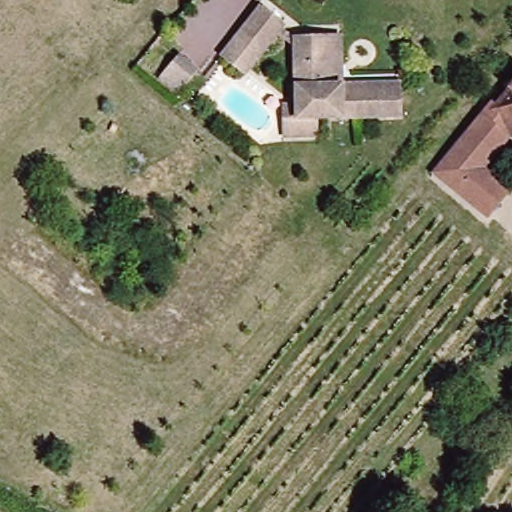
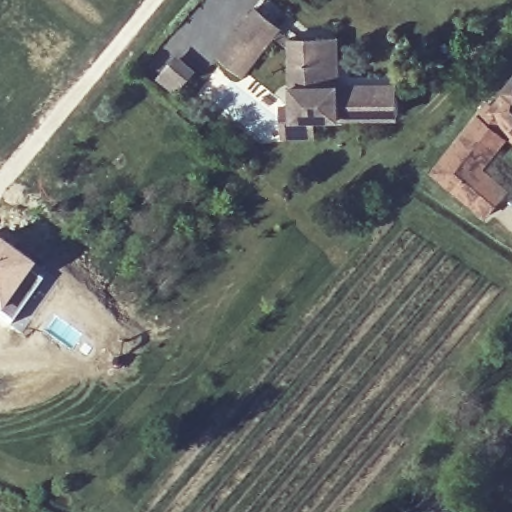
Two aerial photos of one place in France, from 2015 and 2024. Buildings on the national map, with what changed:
unchanged [(227,58),(262,10),(285,30),(250,76),(227,58)]
unchanged [(293,140),(293,121),(300,121),(298,41),(327,40),(342,39),(343,86),(345,92),(399,87),(399,118),(318,120),(317,139),(293,140)]
unchanged [(187,91),(171,78),(187,58),(204,71),(187,91)]
unchanged [(504,132),(482,157),(460,139),(495,100),(500,102),(512,88),(512,139),(504,132)]
unchanged [(482,157),(478,161),(510,189),(488,214),(435,169),(460,139),(482,157)]
new [(8,327),(0,322),(0,253),(41,282),(8,327)]

